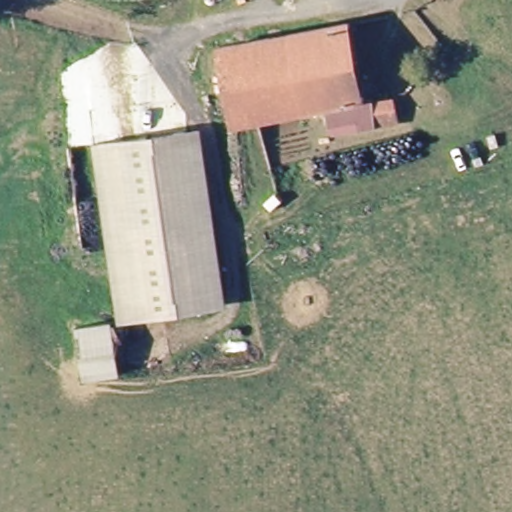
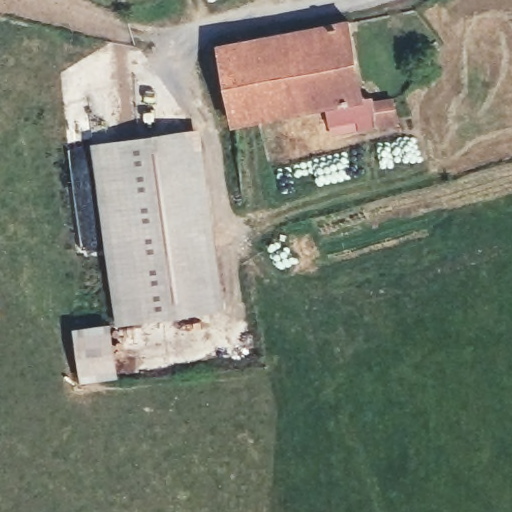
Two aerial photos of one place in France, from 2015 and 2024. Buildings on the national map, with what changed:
unchanged [(337,144),(328,114),(236,135),(219,57),(347,26),(365,100),(379,96),(381,102),(401,97),(409,127),(337,144)]
unchanged [(201,132),(231,306),(214,310),(183,135),(201,132)]
unchanged [(125,327),(93,151),(183,135),(214,310),(125,327)]
unchanged [(90,388),(83,336),(119,328),(127,381),(90,388)]

